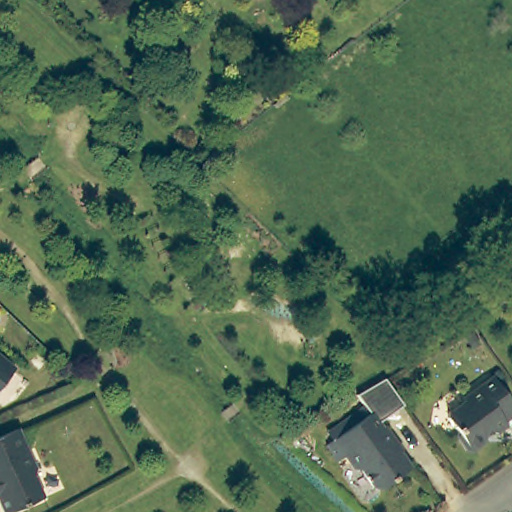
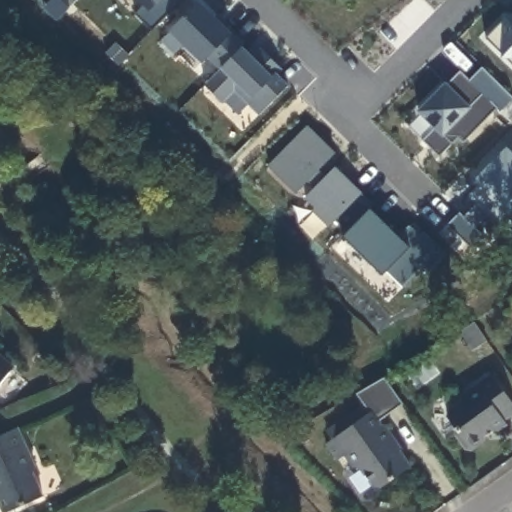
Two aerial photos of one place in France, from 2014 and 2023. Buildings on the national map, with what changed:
new [(152,30),(136,14),(145,7),(138,0),(182,0),(152,30)]
new [(259,116),(234,92),(224,104),(206,86),(223,72),(220,69),(210,55),(203,63),(171,30),(200,2),(215,17),(217,15),(245,43),(242,46),(252,57),(260,49),(281,71),(278,75),(287,85),(259,116)]
new [(508,59),(501,58),(501,51),(486,38),(504,21),(504,14),(512,15),(512,63),(508,59)]
new [(502,112),(497,108),(465,141),(458,135),(440,156),(424,141),(435,130),(417,112),(447,83),(450,85),(461,72),(470,80),(482,68),(512,99),(512,101),(502,112)]
new [(335,153),(318,170),(325,176),(335,167),(371,205),(369,209),(400,238),(408,226),(419,237),(423,232),(448,256),(410,294),(388,269),(383,275),(343,236),(351,228),(337,219),(330,227),(313,211),(315,208),(305,198),(317,186),(309,180),(295,194),(268,166),(307,126),(335,153)]
new [(508,216),(470,244),(450,226),(461,212),(466,216),(476,205),(470,196),(480,188),(473,181),(507,147),(512,143),(512,219),(508,216)]
unchanged [(0,378),(0,358),(10,366),(0,378)]
unchanged [(456,427),(448,415),(450,408),(465,397),(462,394),(494,372),(512,396),(512,413),(507,417),(510,422),(500,430),(497,426),(485,433),(488,438),(472,448),(465,446),(456,435),(456,427)]
unchanged [(357,395),(385,379),(403,404),(378,423),(370,411),(357,395)]
unchanged [(380,487),(369,484),(358,467),(355,468),(343,454),(335,459),(326,443),(370,411),(381,426),(383,425),(393,438),(390,440),(411,465),(380,487)]
unchanged [(30,473),(40,494),(1,511),(0,508),(0,431),(15,424),(32,463),(30,473)]

